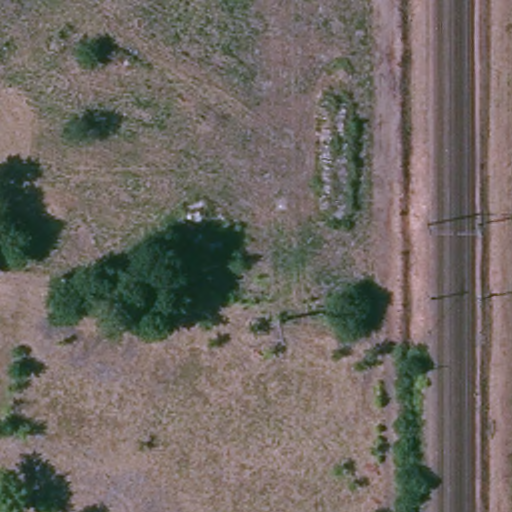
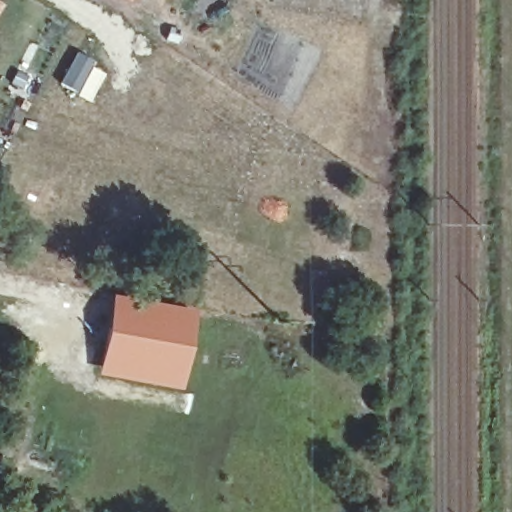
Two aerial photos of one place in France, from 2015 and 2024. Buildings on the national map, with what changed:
new [(2,7),(0,9),(0,5),(2,7)]
new [(112,292),(191,309),(177,390),(98,375),(112,292)]

